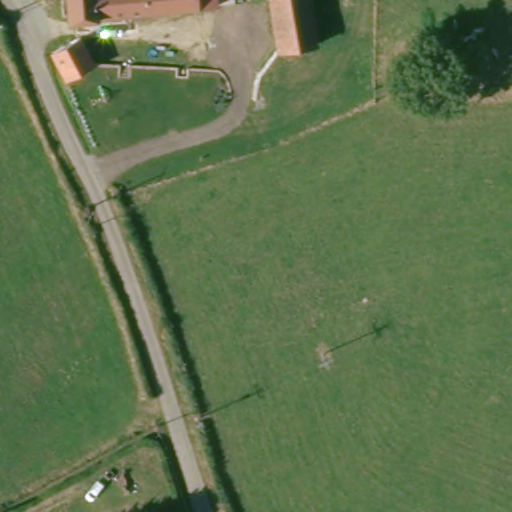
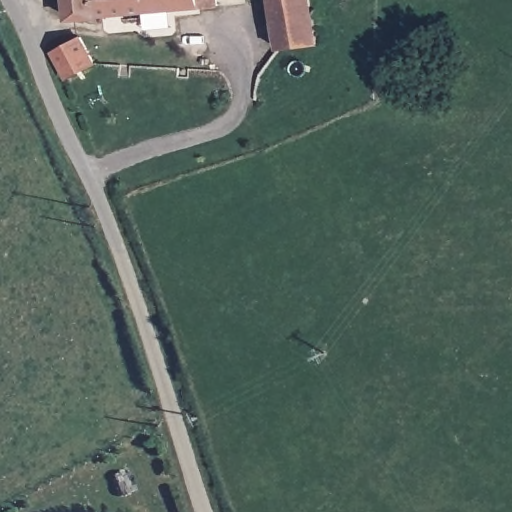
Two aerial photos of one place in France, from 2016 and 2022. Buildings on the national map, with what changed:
unchanged [(76,20),(74,0),(219,0),(220,7),(76,20)]
unchanged [(281,55),(274,0),(312,0),(318,50),(281,55)]
unchanged [(80,37),(89,64),(61,73),(51,46),(80,37)]
unchanged [(213,104),(189,102),(192,68),(216,70),(213,104)]

